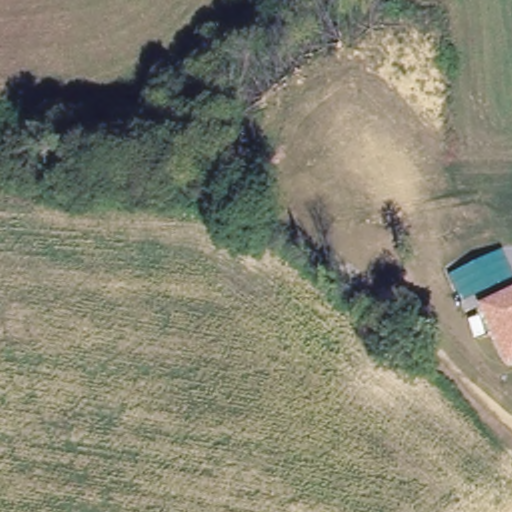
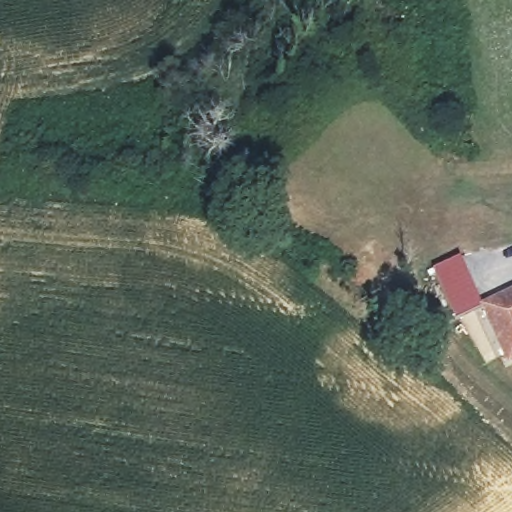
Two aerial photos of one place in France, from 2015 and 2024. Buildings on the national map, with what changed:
unchanged [(512,361),(505,364),(478,303),(512,288),(512,361)]

